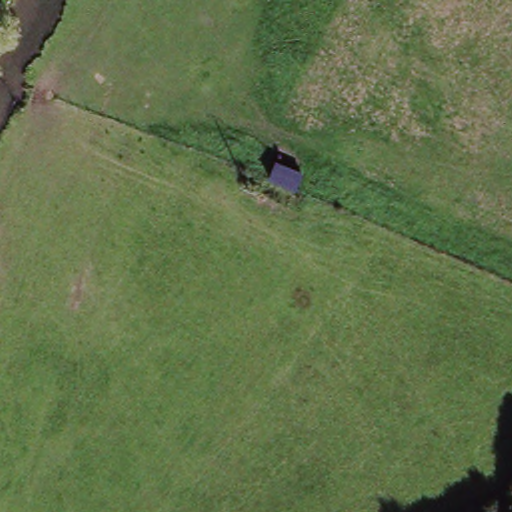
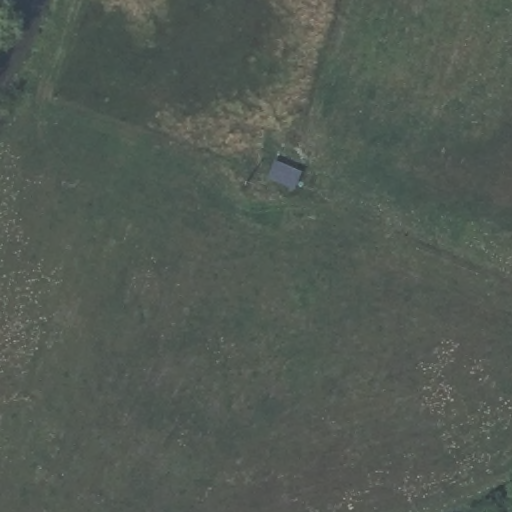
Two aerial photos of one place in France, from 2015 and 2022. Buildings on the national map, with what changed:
unchanged [(296,196),(263,177),(271,153),(307,170),(296,196)]

